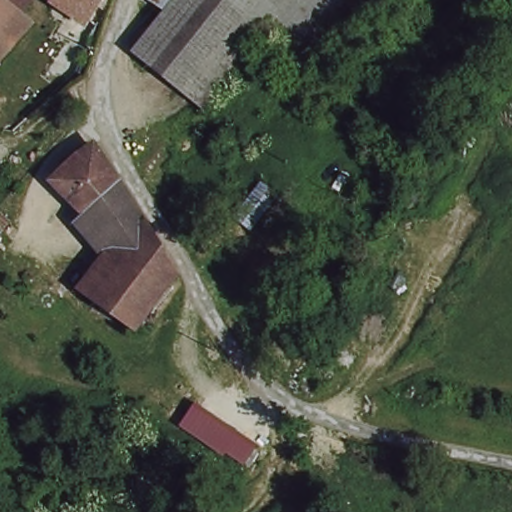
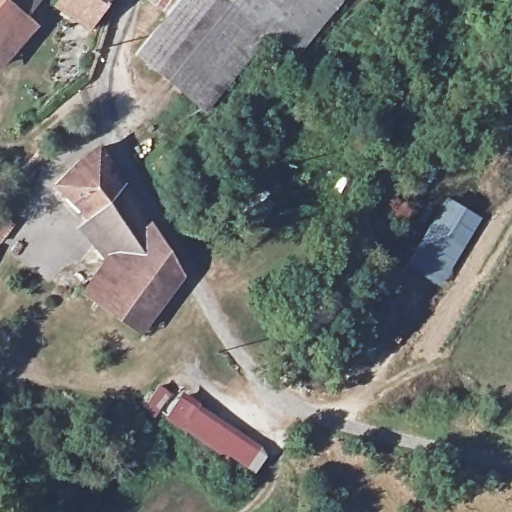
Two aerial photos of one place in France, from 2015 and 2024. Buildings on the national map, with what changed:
unchanged [(0,30),(0,0),(25,0),(9,19),(0,30)]
unchanged [(51,0),(55,0),(53,5),(51,0)]
unchanged [(53,5),(55,0),(107,0),(88,30),(53,5)]
unchanged [(267,31),(201,117),(170,91),(166,95),(128,60),(161,20),(141,0),(346,0),(301,59),(267,31)]
unchanged [(9,19),(26,31),(0,64),(0,32),(9,19)]
unchanged [(136,214),(170,273),(133,328),(98,300),(124,263),(52,186),(91,144),(136,214)]
new [(444,197),(480,218),(437,286),(402,265),(444,197)]
unchanged [(243,430),(228,460),(183,428),(199,407),(243,430)]

